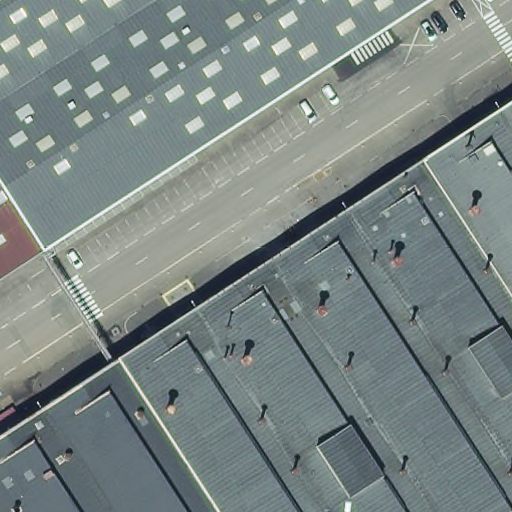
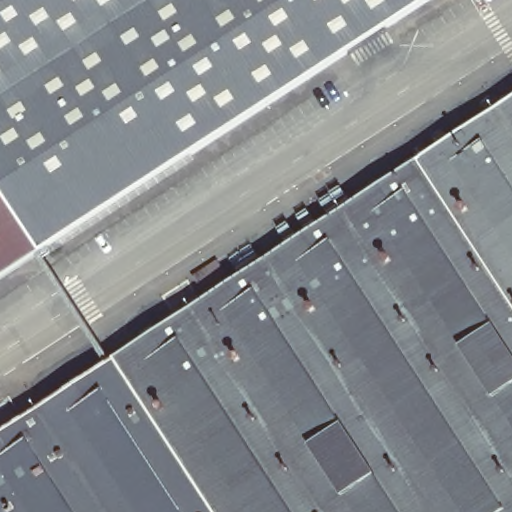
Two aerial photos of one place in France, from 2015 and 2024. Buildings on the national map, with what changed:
unchanged [(0,174),(0,0),(441,0),(50,249),(0,174)]
unchanged [(512,108),(512,512),(0,512),(0,433),(512,108)]
unchanged [(0,280),(0,174),(50,249),(0,280)]

